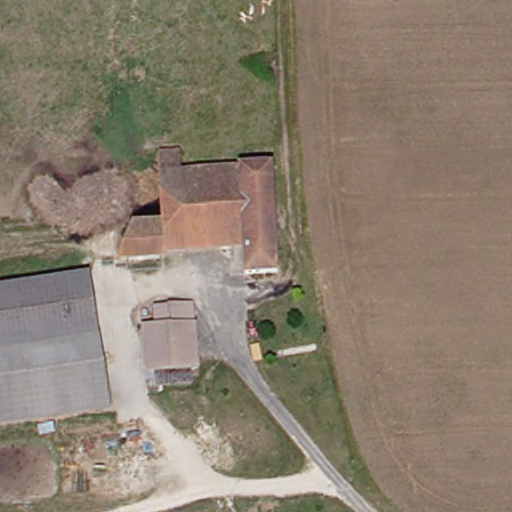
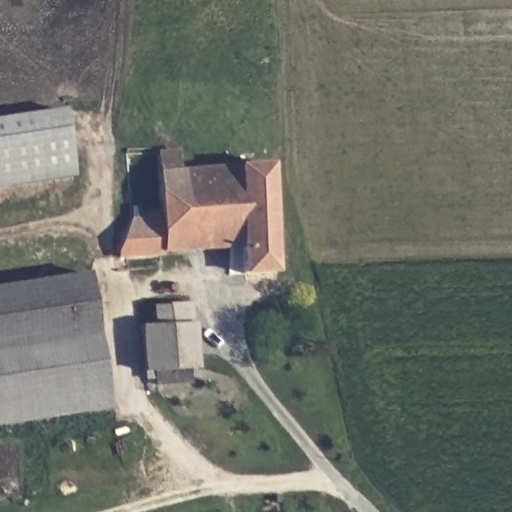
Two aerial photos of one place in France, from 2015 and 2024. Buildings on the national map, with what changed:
new [(63,109),(75,177),(0,189),(0,118),(63,109)]
unchanged [(163,152),(191,147),(197,171),(276,165),(294,268),(261,275),(254,239),(248,211),(173,224),(163,152)]
unchanged [(173,224),(248,211),(254,239),(176,252),(173,224)]
unchanged [(176,252),(135,257),(141,228),(173,224),(176,252)]
unchanged [(0,316),(0,289),(93,269),(96,292),(0,316)]
unchanged [(0,344),(0,316),(96,292),(104,319),(0,344)]
unchanged [(164,307),(201,303),(204,326),(208,363),(156,372),(149,330),(165,327),(164,307)]
unchanged [(119,398),(0,428),(0,344),(104,319),(119,398)]

